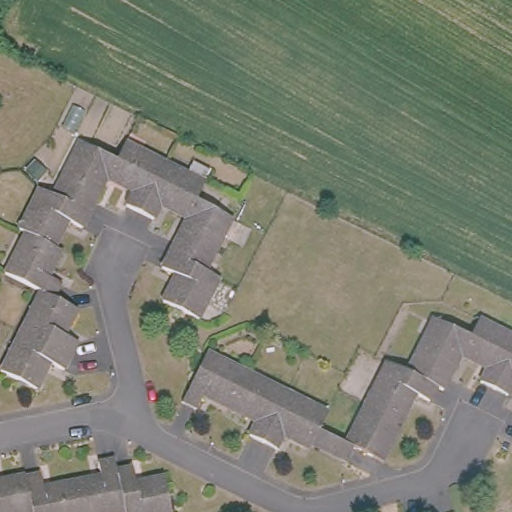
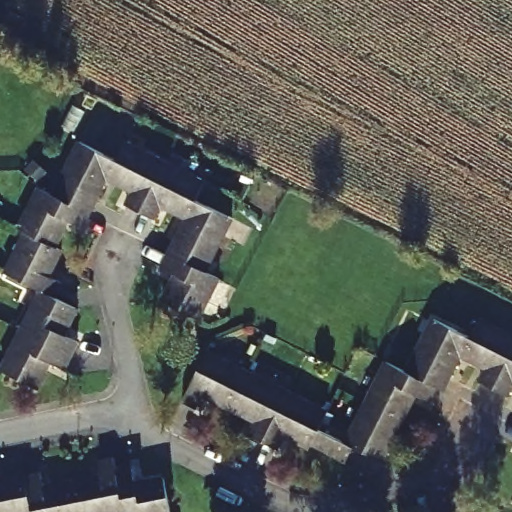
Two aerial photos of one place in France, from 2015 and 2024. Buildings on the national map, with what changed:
unchanged [(124,137),(125,136),(166,157),(141,208),(127,202),(133,187),(106,175),(115,155),(124,137)]
unchanged [(79,138),(115,155),(106,175),(90,209),(52,190),(79,138)]
unchanged [(204,177),(195,196),(186,214),(161,202),(155,215),(141,208),(166,157),(204,177)]
unchanged [(20,225),(39,184),(52,190),(90,209),(82,225),(68,217),(56,242),(25,227),(20,225)]
unchanged [(186,214),(195,196),(232,214),(205,267),(169,249),(186,214)]
unchanged [(63,246),(50,273),(63,280),(57,294),(42,286),(6,268),(25,227),(56,242),(63,246)]
unchanged [(219,273),(198,315),(162,297),(175,270),(162,263),(169,249),(205,267),(219,273)]
unchanged [(79,305),(66,331),(79,338),(73,351),(22,326),(42,286),(57,294),(79,305)]
unchanged [(438,315),(474,332),(465,351),(447,385),(442,382),(411,367),(438,315)]
unchanged [(486,378),(492,364),(465,351),(474,332),(483,315),(512,329),(512,357),(499,384),(486,378)]
unchanged [(1,367),(22,326),(73,351),(66,366),(52,359),(38,386),(1,367)]
unchanged [(254,367),(235,405),(207,392),(201,403),(187,397),(212,347),(254,367)]
unchanged [(435,397),(421,391),(407,417),(371,399),(392,357),(411,367),(442,382),(435,397)]
unchanged [(499,384),(512,357),(512,390),(499,384)]
unchanged [(254,431),(261,417),(235,405),(254,367),(292,387),(267,437),(254,431)]
unchanged [(332,407),(323,425),(316,440),(314,443),(289,432),(282,445),(267,437),(292,387),(332,407)]
unchanged [(407,417),(387,457),(359,442),(351,458),(316,440),(323,425),(351,438),(371,399),(407,417)]
unchanged [(102,481),(99,465),(115,462),(117,476),(124,512),(78,512),(73,487),(102,481)]
unchanged [(132,472),(136,488),(163,482),(169,512),(124,512),(117,476),(132,472)]
unchanged [(25,481),(40,477),(44,492),(73,487),(78,512),(30,512),(25,481)]
unchanged [(30,512),(0,512),(0,485),(25,481),(30,512)]

